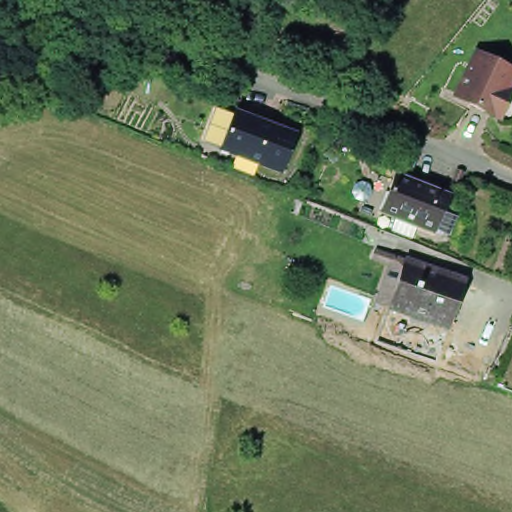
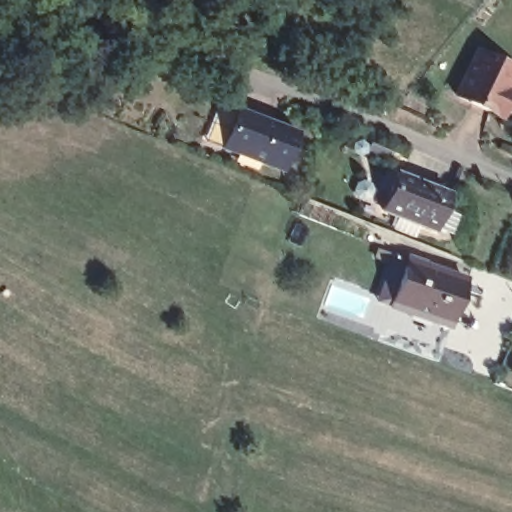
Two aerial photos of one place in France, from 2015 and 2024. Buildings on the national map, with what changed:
unchanged [(496,121),(491,119),(461,104),(460,105),(452,101),(472,57),(509,73),(512,75),(502,93),(508,96),(496,121)]
unchanged [(216,149),(218,142),(230,110),(274,127),(291,133),(286,145),(279,164),(277,170),(216,149)]
unchanged [(353,143),(361,140),(366,144),(365,151),(358,154),(352,150),(353,143)]
unchanged [(376,213),(378,206),(390,176),(439,195),(434,208),(439,210),(432,227),(430,234),(376,213)]
unchanged [(448,329),(389,307),(377,303),(390,265),(374,259),(376,252),(393,258),(405,262),(465,284),(448,329)]

